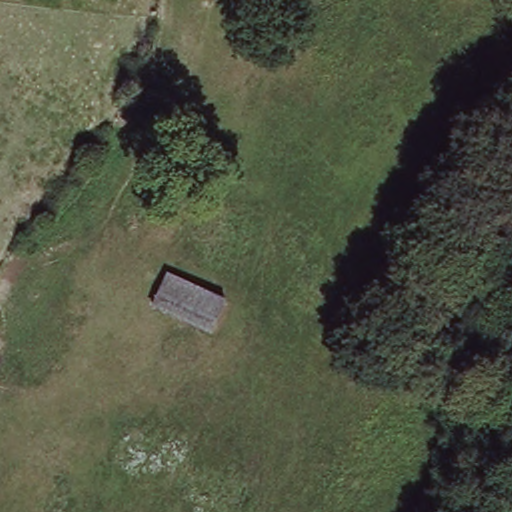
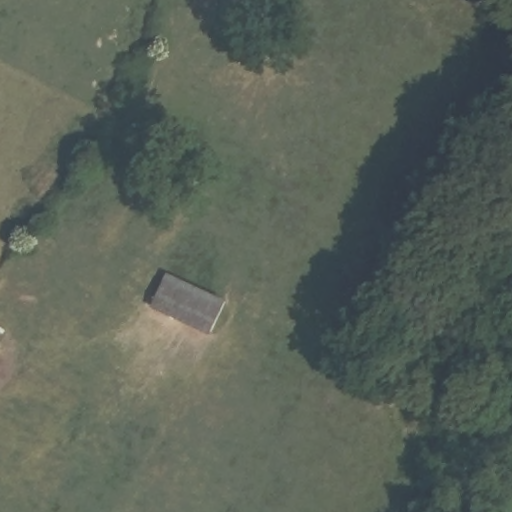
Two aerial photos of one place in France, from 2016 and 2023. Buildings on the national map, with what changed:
unchanged [(217,296),(206,331),(147,310),(158,274),(217,296)]

